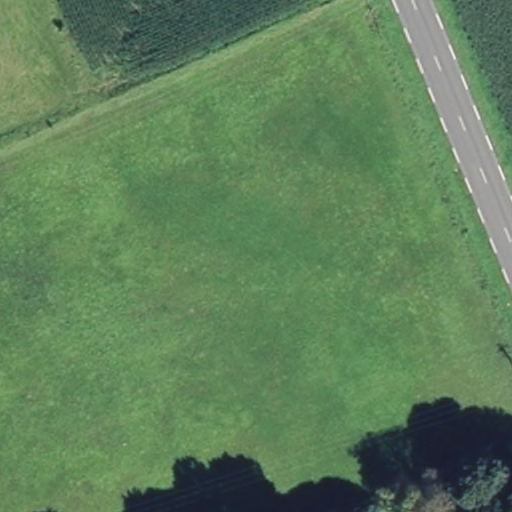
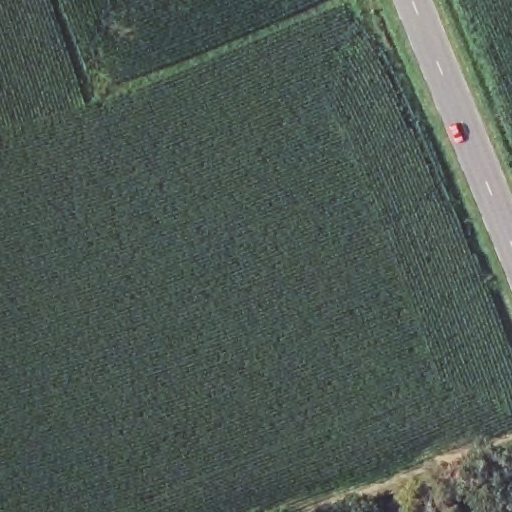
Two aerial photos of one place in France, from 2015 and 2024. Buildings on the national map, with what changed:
[]

